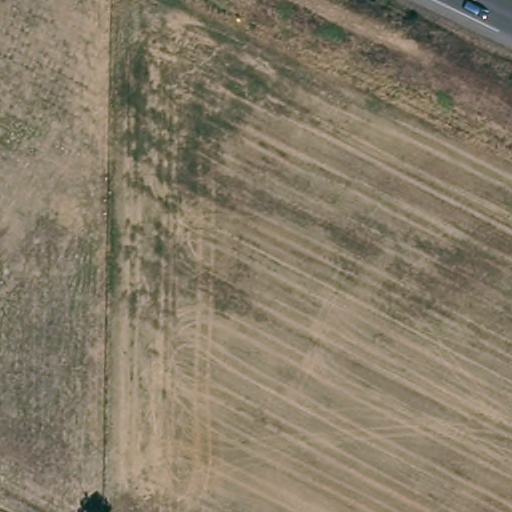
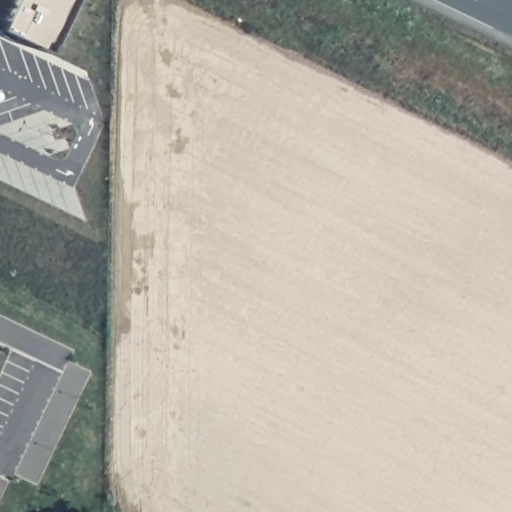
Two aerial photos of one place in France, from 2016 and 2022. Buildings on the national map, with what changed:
new [(79,0),(51,59),(1,35),(17,0),(79,0)]

